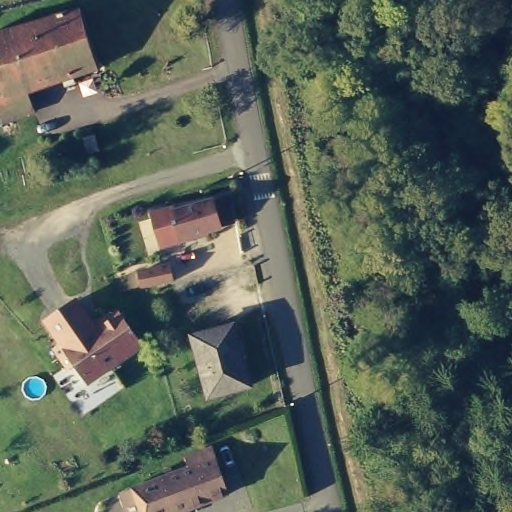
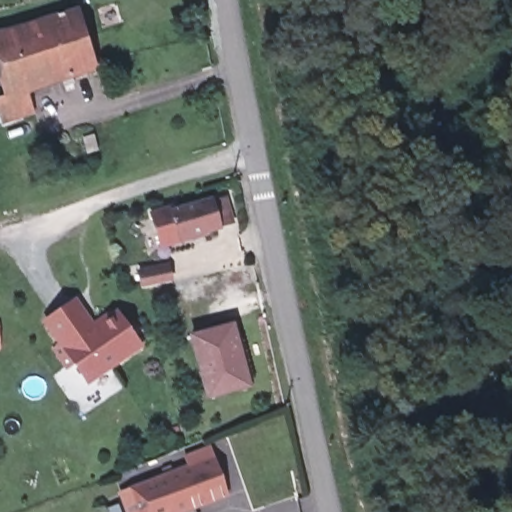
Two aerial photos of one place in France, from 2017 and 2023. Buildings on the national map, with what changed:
unchanged [(63,75),(26,86),(32,106),(1,115),(0,112),(0,86),(3,86),(0,75),(0,26),(79,5),(97,65),(72,72),(73,78),(65,81),(63,75)]
unchanged [(98,151),(88,154),(83,138),(95,135),(98,151)]
unchanged [(163,212),(202,201),(202,202),(215,198),(223,224),(210,228),(171,240),(163,212)]
unchanged [(172,282),(142,288),(140,272),(168,266),(172,282)]
unchanged [(140,346),(88,382),(76,364),(68,369),(54,349),(62,344),(47,322),(75,302),(94,329),(101,325),(102,320),(110,314),(115,315),(117,313),(140,346)]
unchanged [(245,382),(204,393),(187,332),(228,321),(245,382)]
unchanged [(122,489),(116,473),(136,465),(142,481),(167,472),(164,466),(170,463),(173,469),(189,463),(185,453),(210,443),(227,491),(186,506),(188,510),(182,512),(179,512),(178,508),(168,512),(130,512),(122,489)]

